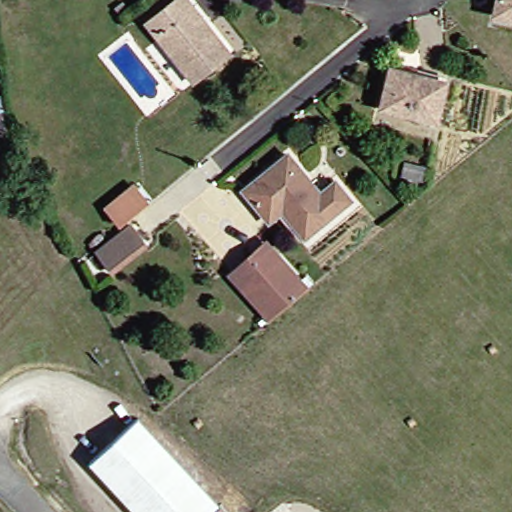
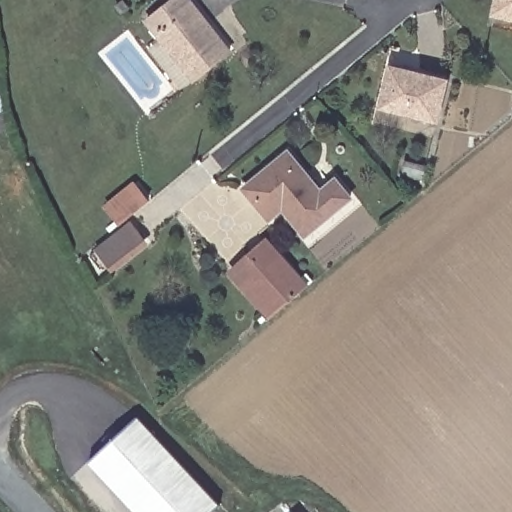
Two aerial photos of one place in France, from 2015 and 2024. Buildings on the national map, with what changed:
unchanged [(240,57),(199,86),(155,20),(183,0),(199,0),(240,57)]
unchanged [(506,0),(512,0),(512,13),(503,10),(506,0)]
unchanged [(449,87),(435,124),(384,106),(398,71),(449,87)]
unchanged [(356,204),(305,236),(285,210),(275,216),(252,184),(297,152),(328,195),(343,184),(356,204)]
unchanged [(419,172),(415,184),(393,177),(397,165),(419,172)]
unchanged [(106,204),(134,180),(150,199),(121,223),(106,204)]
unchanged [(115,272),(99,252),(138,225),(153,246),(115,272)]
unchanged [(256,254),(275,240),(290,257),(316,287),(298,302),(276,319),(236,271),(256,254)]
unchanged [(207,512),(141,512),(88,456),(135,410),(221,499),(207,512)]

